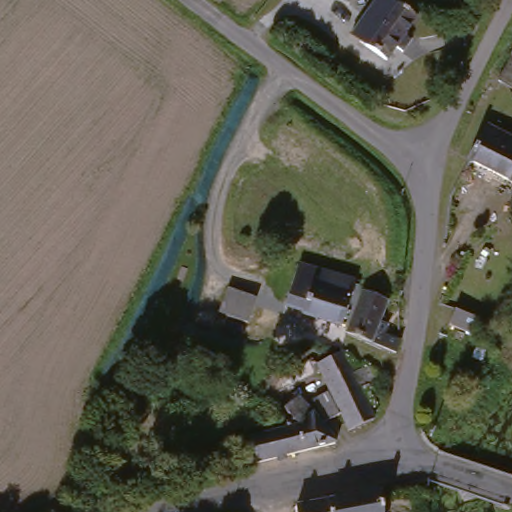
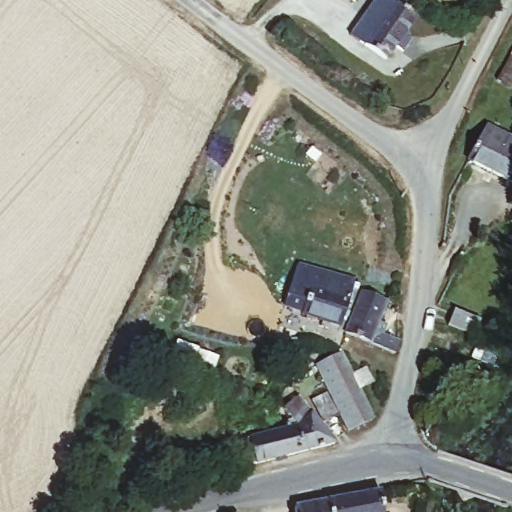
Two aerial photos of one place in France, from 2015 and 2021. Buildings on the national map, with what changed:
unchanged [(344,6),(335,0),(349,0),(344,6)]
unchanged [(399,35),(406,39),(397,54),(389,50),(382,60),(363,47),(346,36),(370,0),(375,0),(387,7),(409,20),(399,35)]
unchanged [(512,44),(512,69),(502,61),(512,44)]
unchanged [(475,136),(483,124),(512,141),(512,159),(511,160),(512,161),(512,190),(459,156),(472,135),(475,136)]
unchanged [(311,278),(320,254),(380,276),(368,302),(355,297),(355,296),(351,307),(346,305),(306,291),(311,278)]
unchanged [(346,305),(335,335),(297,322),(298,319),(279,310),(295,273),(311,278),(306,291),(346,305)]
unchanged [(351,307),(355,296),(355,297),(368,302),(379,306),(371,336),(382,340),(378,352),(377,356),(341,343),(351,307)]
unchanged [(452,315),(477,329),(469,343),(443,330),(452,315)]
unchanged [(313,401),(326,395),(312,368),(340,355),(374,418),(347,434),(338,417),(325,424),(313,401)]
unchanged [(284,410),(299,398),(335,446),(245,470),(238,443),(298,428),(284,410)]
unchanged [(374,496),(376,512),(288,512),(287,508),(374,496)]

